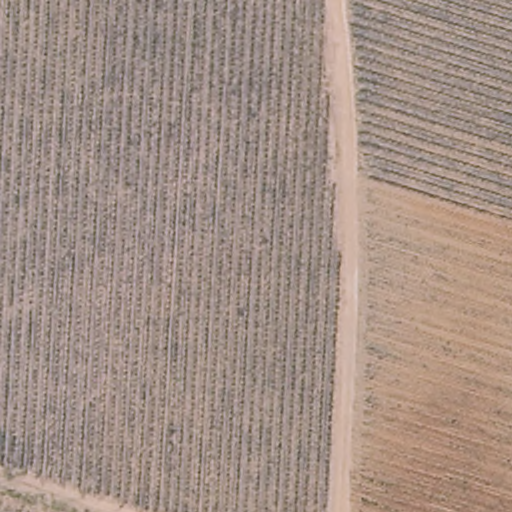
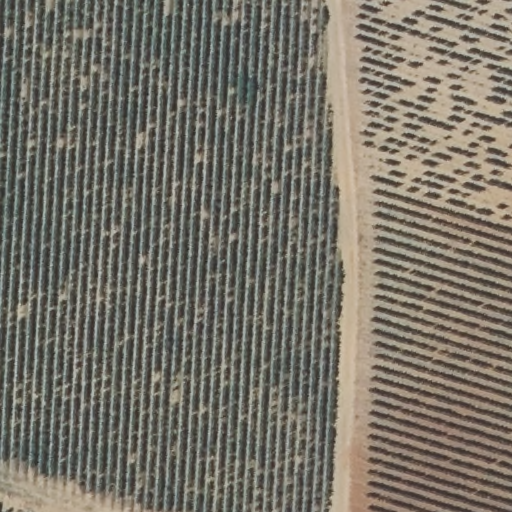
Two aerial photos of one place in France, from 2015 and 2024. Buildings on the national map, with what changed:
[]

